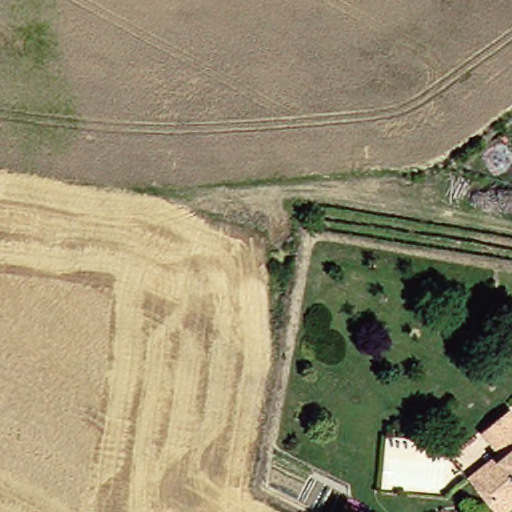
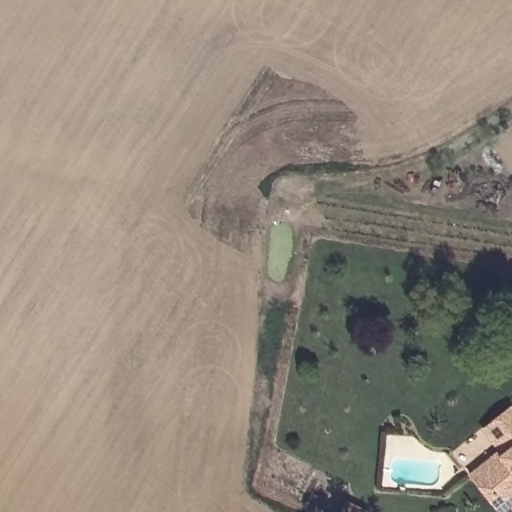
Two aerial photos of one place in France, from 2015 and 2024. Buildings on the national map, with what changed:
unchanged [(501,502),(475,471),(500,448),(479,425),(502,403),(512,413),(512,492),(501,502)]
unchanged [(357,508),(365,512),(355,512),(357,508)]

